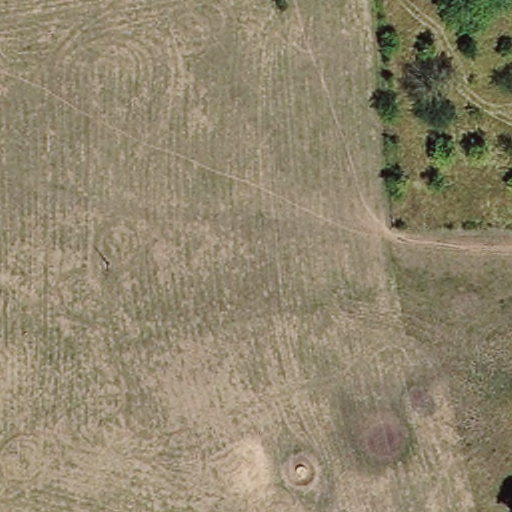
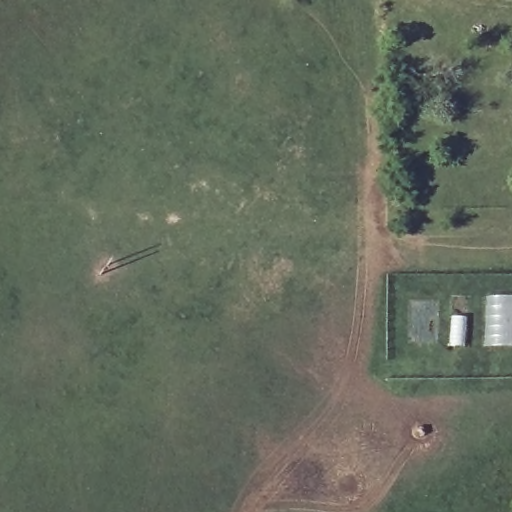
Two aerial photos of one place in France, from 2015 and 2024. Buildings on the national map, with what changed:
new [(512,295),(512,348),(483,347),(485,294),(512,295)]

